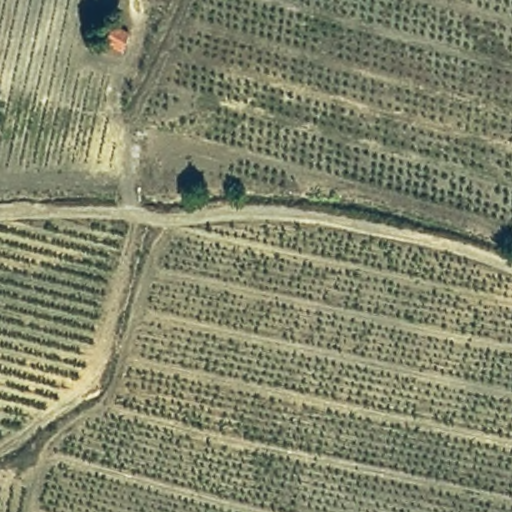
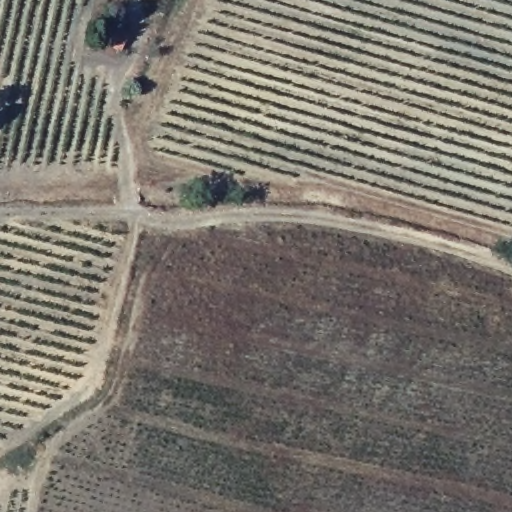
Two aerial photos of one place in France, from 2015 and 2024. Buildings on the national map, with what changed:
unchanged [(120,55),(105,47),(114,25),(129,34),(120,55)]

